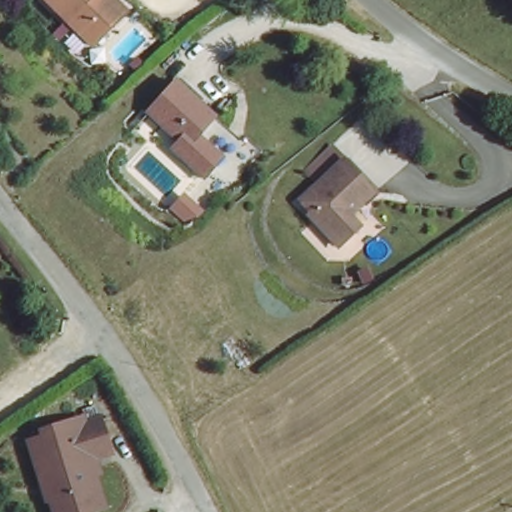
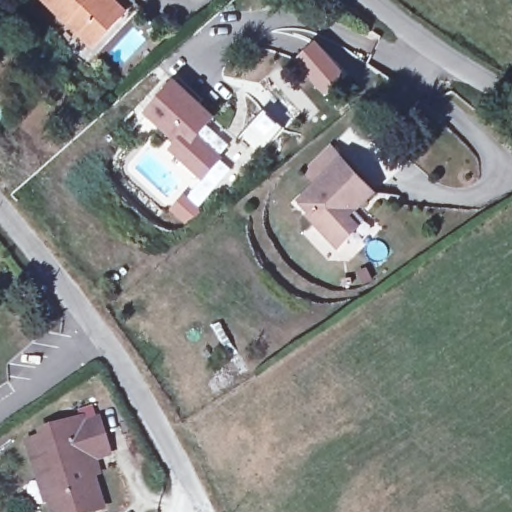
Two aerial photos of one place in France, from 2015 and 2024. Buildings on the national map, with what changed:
unchanged [(45,0),(108,0),(120,14),(125,20),(91,50),(89,49),(45,0)]
new [(294,60),(316,41),(347,76),(325,96),(294,60)]
unchanged [(204,114),(189,130),(213,154),(193,175),(167,150),(173,142),(140,112),(173,80),(204,114)]
unchanged [(374,192),(351,219),(360,229),(340,247),(300,206),(347,163),(374,192)]
unchanged [(87,460),(101,508),(90,512),(47,512),(28,440),(96,418),(107,454),(87,460)]

